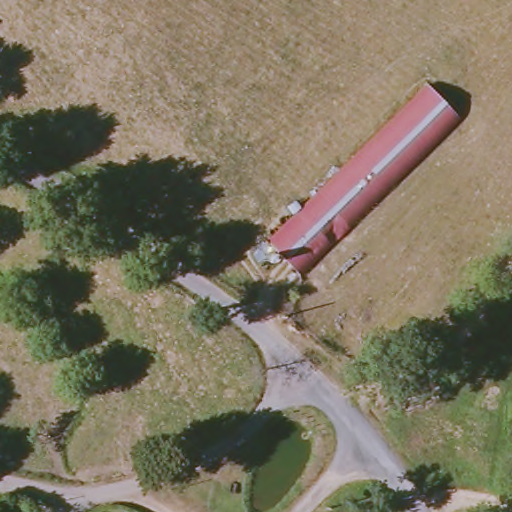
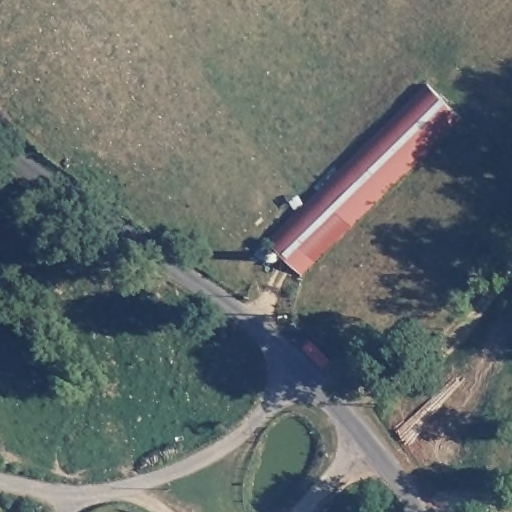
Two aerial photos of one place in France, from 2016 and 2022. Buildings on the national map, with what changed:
unchanged [(300,274),(270,240),(428,86),(460,118),(300,274)]

